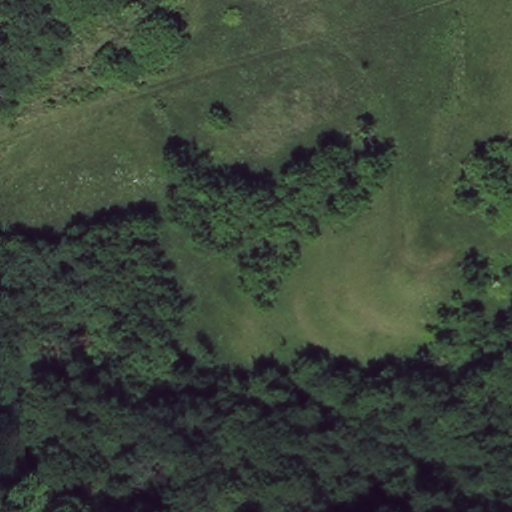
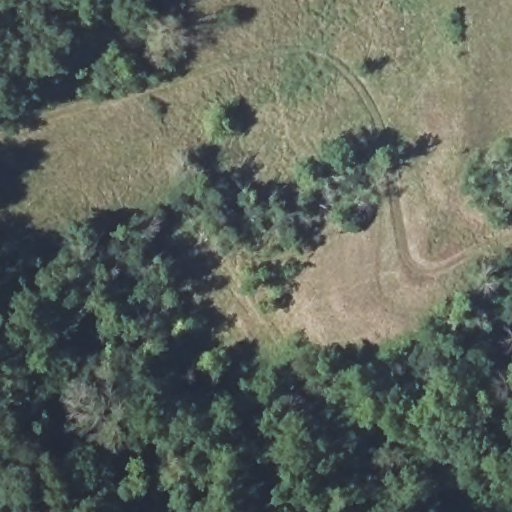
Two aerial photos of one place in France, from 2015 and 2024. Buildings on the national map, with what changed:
unchanged [(490,190),(501,183),(512,201),(512,231),(489,247),(465,207),(490,190)]

